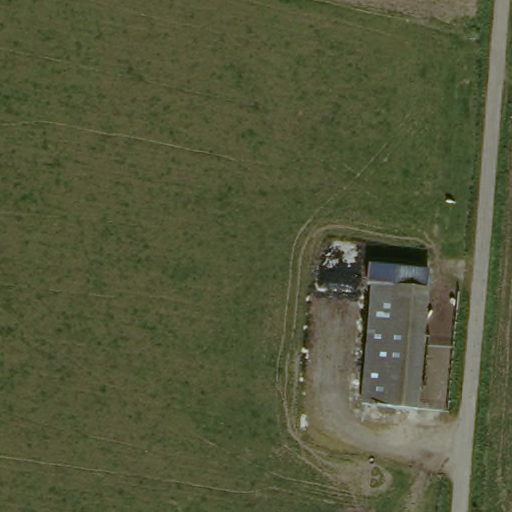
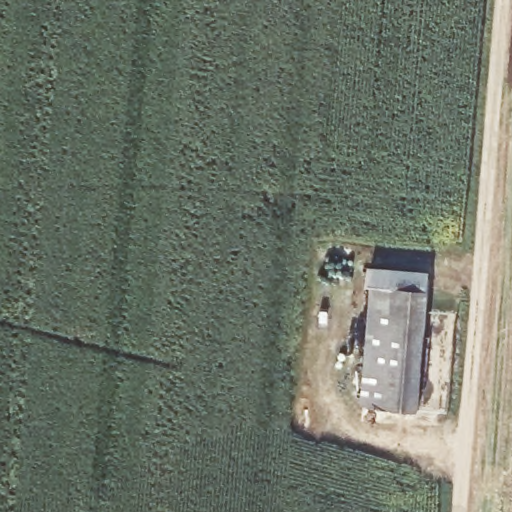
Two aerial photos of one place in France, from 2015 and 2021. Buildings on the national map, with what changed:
unchanged [(363,404),(376,282),(433,289),(419,411),(363,404)]

